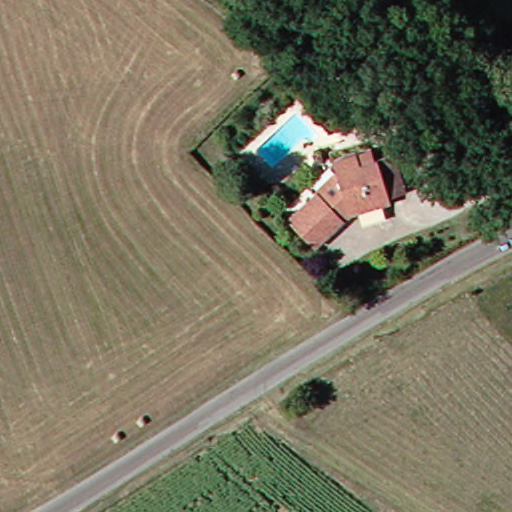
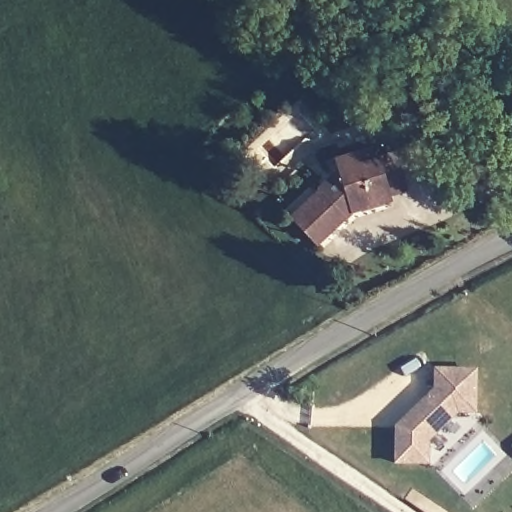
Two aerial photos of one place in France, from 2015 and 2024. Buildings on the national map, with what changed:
unchanged [(320,157),(367,146),(368,153),(376,152),(387,194),(340,210),(307,237),(277,205),(319,165),(320,157)]
new [(400,428),(439,390),(439,371),(479,372),(478,413),(461,413),(431,442),(431,464),(400,463),(400,428)]

